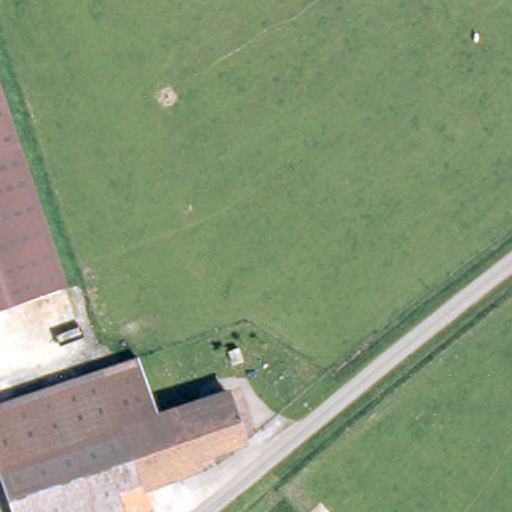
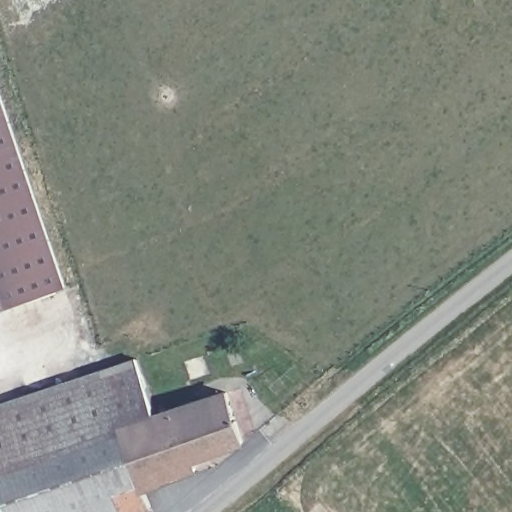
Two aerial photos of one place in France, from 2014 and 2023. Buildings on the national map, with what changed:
unchanged [(0,303),(0,107),(61,282),(0,303)]
unchanged [(0,405),(141,358),(158,408),(82,434),(109,512),(11,512),(0,479),(0,405)]
unchanged [(109,512),(82,434),(158,408),(162,419),(230,395),(248,447),(199,465),(203,476),(152,494),(157,511),(155,512),(109,512)]

